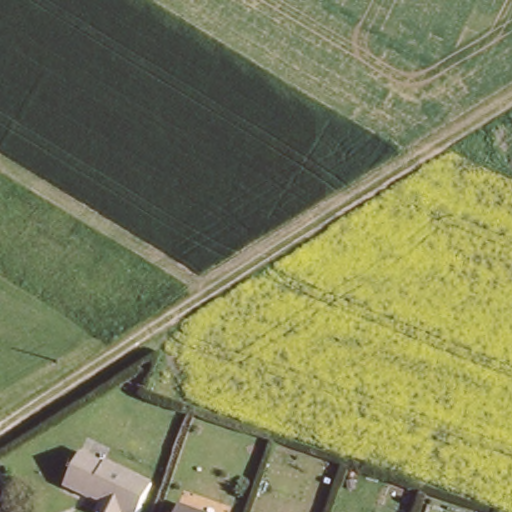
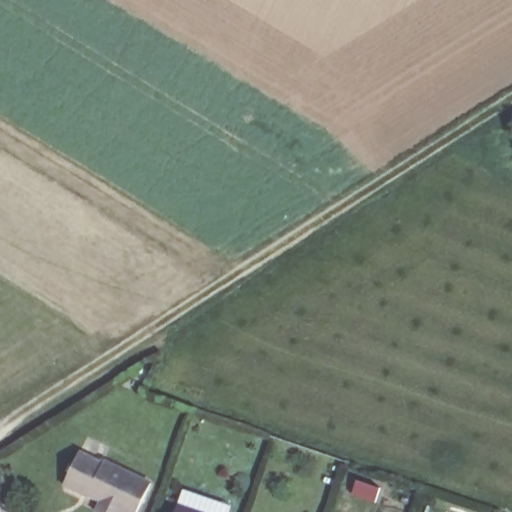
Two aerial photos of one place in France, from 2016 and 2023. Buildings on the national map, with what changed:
unchanged [(152,476),(148,490),(140,511),(127,506),(125,512),(106,512),(101,510),(105,500),(87,492),(85,496),(65,490),(78,455),(102,464),(105,458),(129,467),(144,473),(152,476)]
unchanged [(207,512),(179,512),(182,504),(207,512)]

